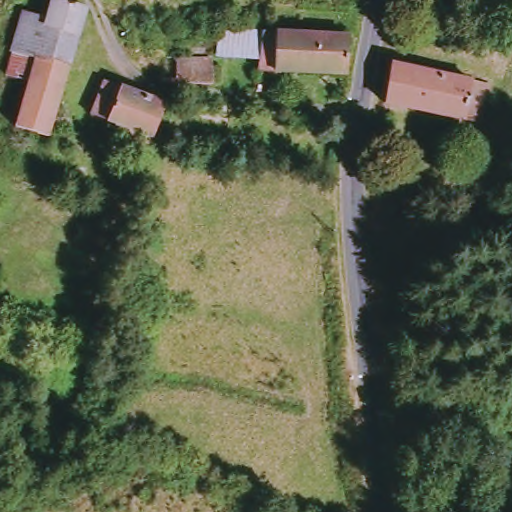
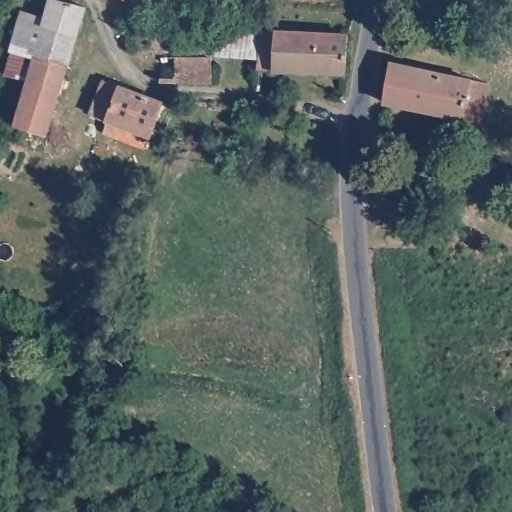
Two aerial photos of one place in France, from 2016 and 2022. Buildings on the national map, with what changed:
unchanged [(14,73),(19,54),(28,18),(51,23),(55,6),(83,10),(89,12),(75,66),(56,135),(25,127),(37,78),(14,73)]
unchanged [(264,70),(265,56),(252,55),(222,52),(225,29),(255,34),(265,34),(350,37),(348,71),(264,70)]
unchanged [(163,81),(163,59),(210,60),(210,84),(163,81)]
unchanged [(385,104),(393,69),(493,90),(485,124),(385,104)]
unchanged [(105,139),(107,125),(93,121),(102,89),(125,92),(164,105),(152,139),(147,150),(105,139)]

